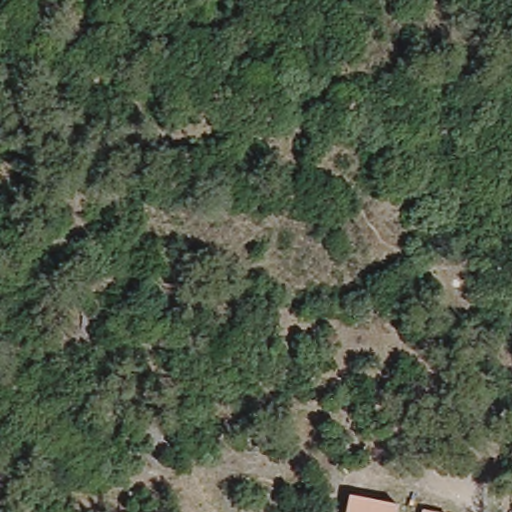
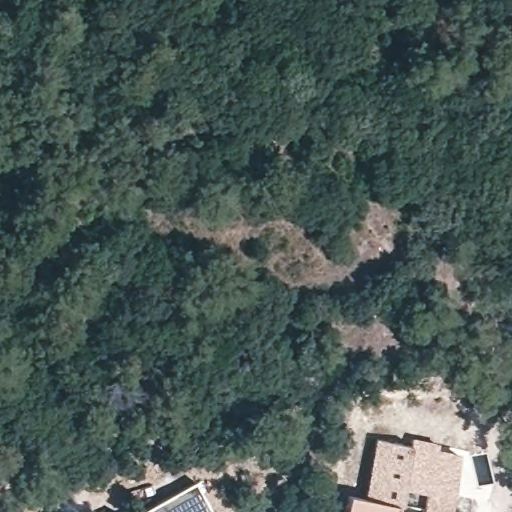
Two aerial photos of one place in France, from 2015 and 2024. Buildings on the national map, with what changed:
new [(363,503),(377,438),(409,444),(410,438),(436,444),(435,450),(458,454),(447,512),(409,512),(363,503)]
new [(195,484),(209,512),(139,512),(195,484)]
unchanged [(353,501),(363,503),(409,512),(350,512),(353,501)]

